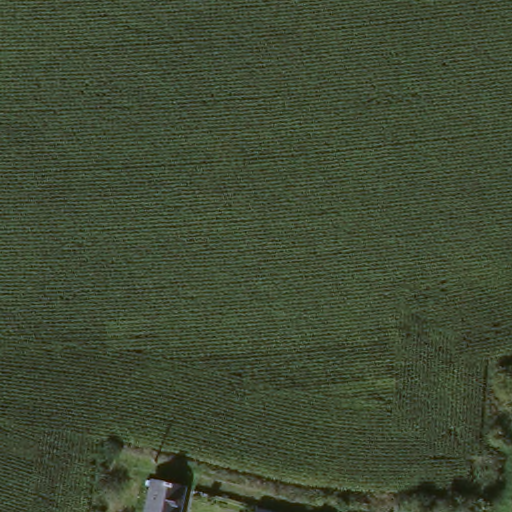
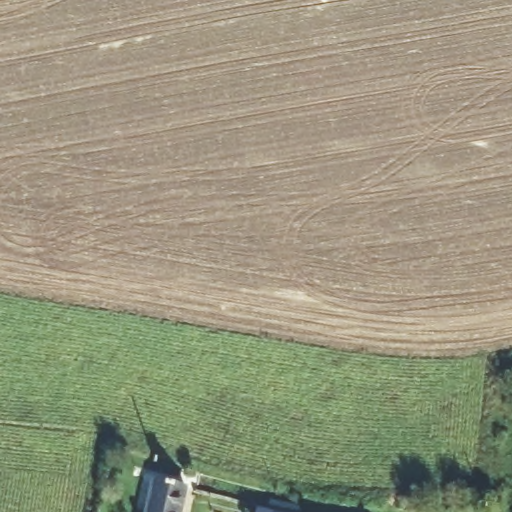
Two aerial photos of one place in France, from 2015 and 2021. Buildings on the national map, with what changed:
unchanged [(148,512),(154,486),(183,492),(178,512),(148,512)]

